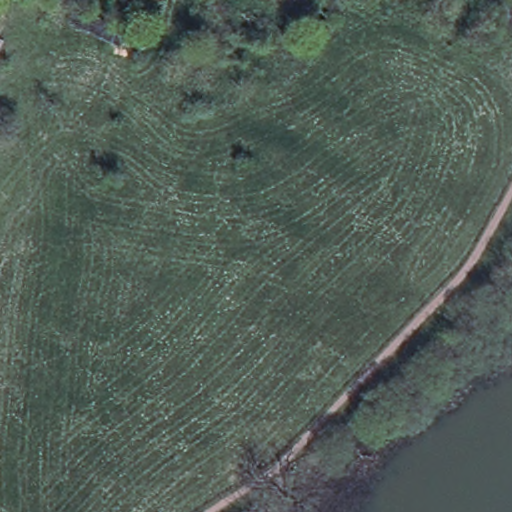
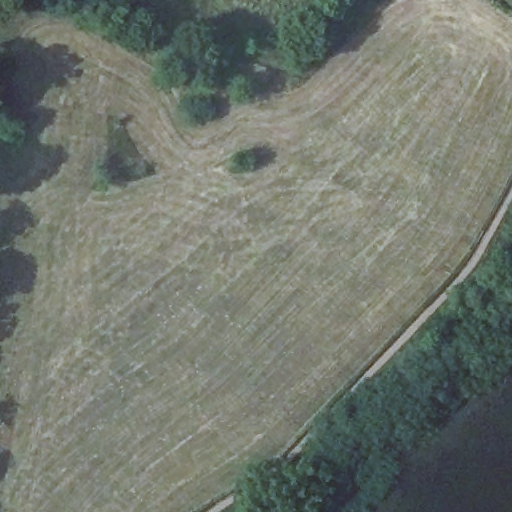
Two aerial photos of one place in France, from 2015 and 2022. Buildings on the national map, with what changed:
[]

